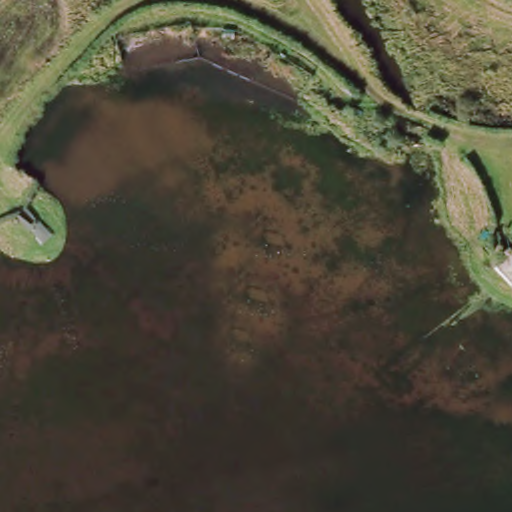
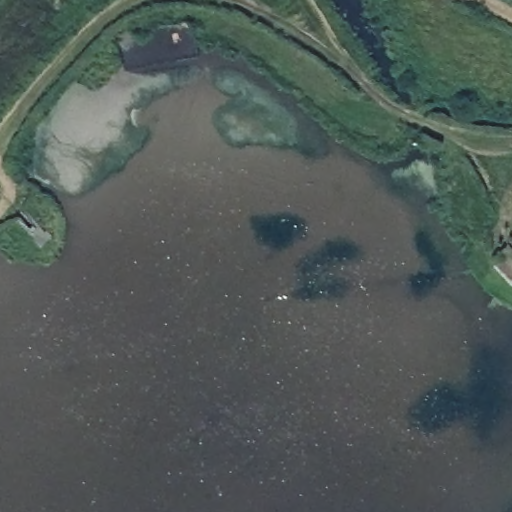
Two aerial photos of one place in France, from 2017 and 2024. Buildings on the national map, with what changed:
unchanged [(50,236),(40,245),(29,230),(39,222),(50,236)]
unchanged [(490,267),(499,257),(495,254),(512,236),(512,277),(505,283),(490,267)]

